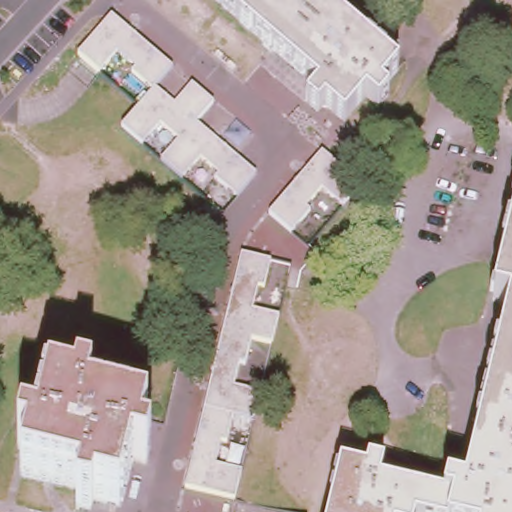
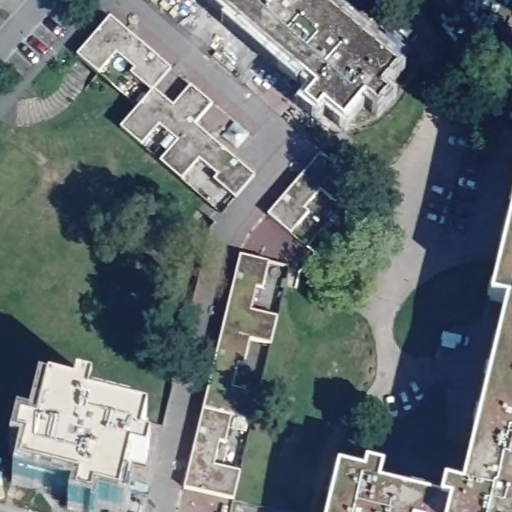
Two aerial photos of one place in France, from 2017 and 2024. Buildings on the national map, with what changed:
unchanged [(383,85),(390,91),(380,104),(367,93),(346,117),(326,100),(320,107),(307,96),(320,82),(224,0),(323,0),(399,65),(383,85)]
unchanged [(124,120),(142,100),(80,46),(115,7),(176,61),(159,81),(177,97),(195,77),(217,97),(199,116),(259,169),(225,207),(124,120)]
unchanged [(326,151),(364,185),(311,245),(273,212),(326,151)]
unchanged [(340,466),(365,472),(368,463),(383,466),(379,483),(442,499),(446,485),(463,489),(509,304),(493,300),(512,221),(512,512),(329,512),(340,466)]
unchanged [(236,493),(187,481),(244,249),(293,261),(236,493)]
unchanged [(94,508),(78,505),(81,487),(22,473),(28,448),(18,446),(22,431),(38,435),(49,388),(75,395),(78,385),(93,388),(89,403),(148,418),(142,444),(152,446),(148,462),(131,458),(120,505),(96,498),(94,508)]

